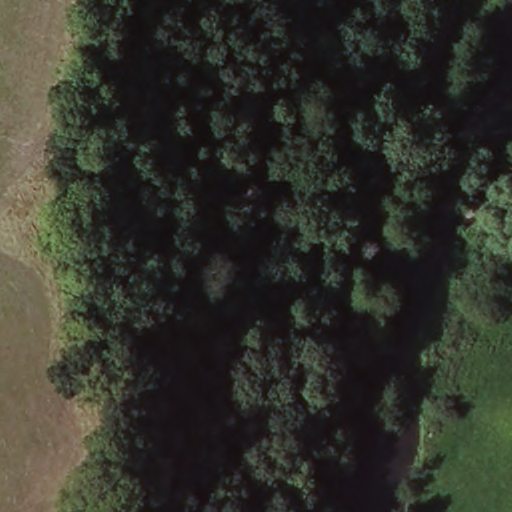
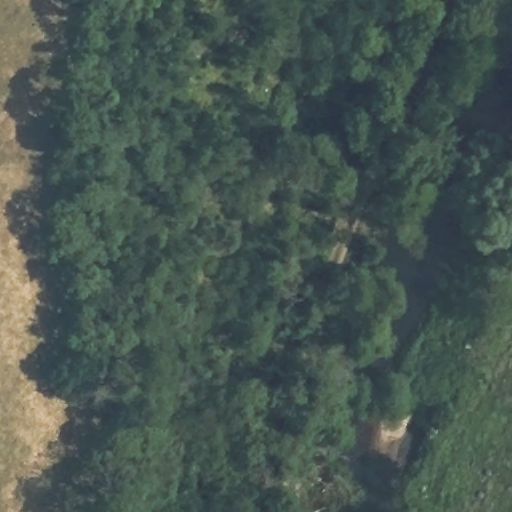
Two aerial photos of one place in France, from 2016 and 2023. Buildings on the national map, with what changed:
[]

